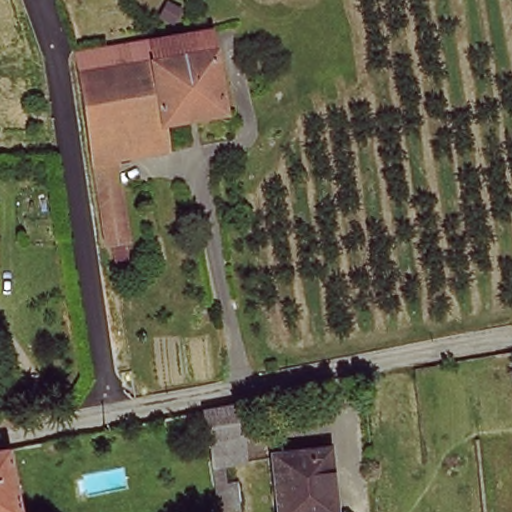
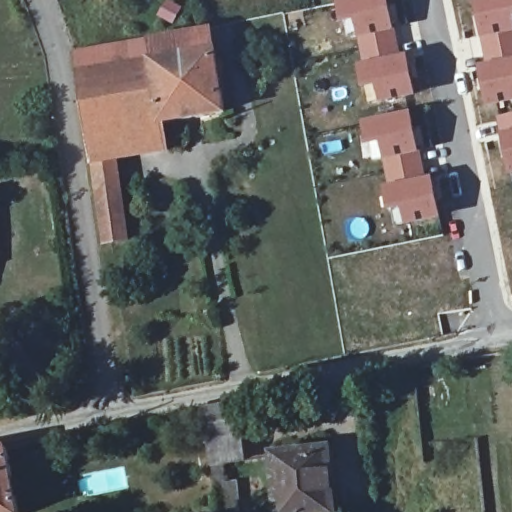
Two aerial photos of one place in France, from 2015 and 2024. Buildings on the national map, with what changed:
new [(401,54),(360,61),(354,35),(344,37),(334,0),(389,0),(401,54)]
new [(512,57),(481,63),(473,0),(512,0),(512,57)]
unchanged [(213,31),(218,58),(155,66),(150,40),(213,31)]
unchanged [(114,136),(118,160),(131,242),(117,245),(106,246),(101,216),(96,189),(95,178),(92,157),(81,98),(81,95),(73,50),(113,45),(150,40),(155,66),(218,58),(220,69),(223,79),(227,100),(230,115),(230,117),(165,127),(114,136)]
new [(360,61),(401,54),(407,53),(416,95),(377,103),(375,88),(361,90),(355,62),(360,61)]
new [(512,101),(487,106),(481,63),(512,57),(512,101)]
new [(410,110),(426,176),(385,182),(377,144),(365,146),(361,121),(410,110)]
new [(512,173),(508,174),(495,116),(512,112),(512,173)]
unchanged [(169,154),(118,160),(114,136),(165,127),(169,154)]
new [(385,182),(426,176),(432,175),(441,218),(402,225),(399,210),(383,212),(378,184),(385,182)]
unchanged [(208,468),(206,442),(205,443),(201,412),(237,407),(240,439),(242,465),(208,468)]
unchanged [(276,512),(271,453),(326,448),(332,512),(276,512)]
unchanged [(0,512),(0,450),(6,450),(17,512),(0,512)]

